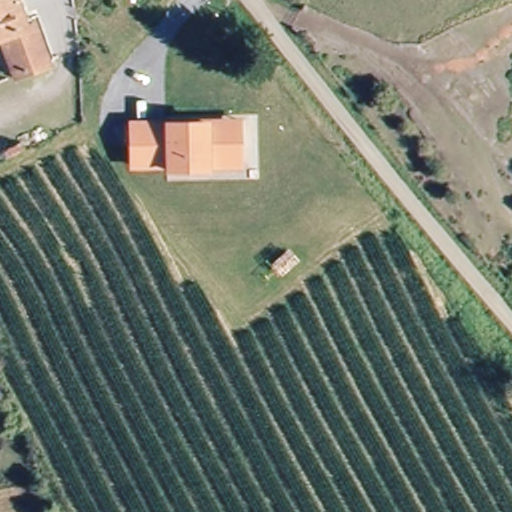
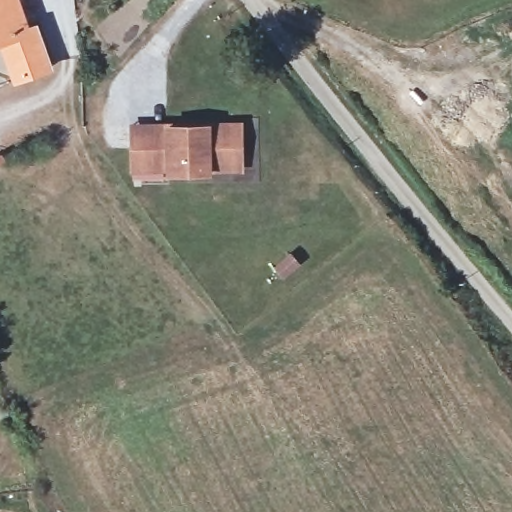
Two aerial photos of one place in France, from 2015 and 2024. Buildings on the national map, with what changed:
unchanged [(39,22),(53,61),(18,76),(3,37),(0,38),(0,0),(20,0),(28,24),(39,22)]
unchanged [(165,123),(212,122),(243,120),(245,171),(212,173),(167,173),(130,172),(129,121),(165,123)]

